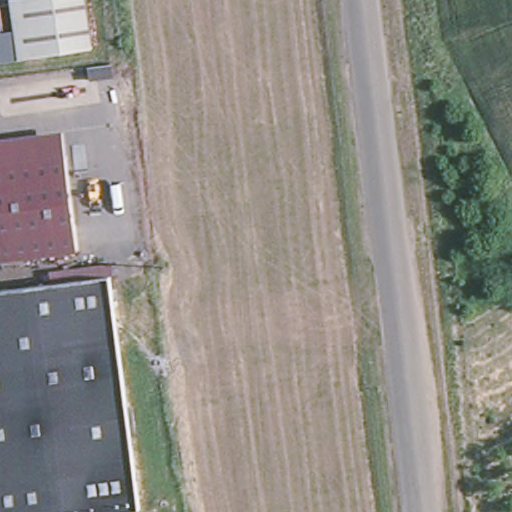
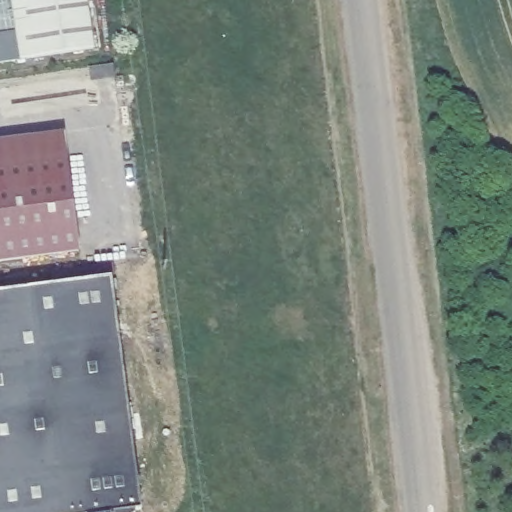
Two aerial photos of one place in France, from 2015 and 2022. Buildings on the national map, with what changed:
unchanged [(19,42),(14,0),(87,0),(95,48),(21,57),(0,60),(0,45),(19,42)]
unchanged [(65,129),(67,153),(0,162),(0,138),(65,129)]
unchanged [(67,153),(80,247),(0,258),(0,162),(67,153)]
unchanged [(142,512),(0,512),(0,294),(112,279),(142,512)]

